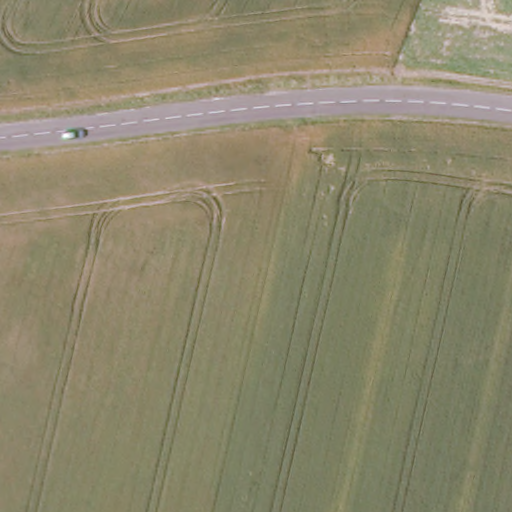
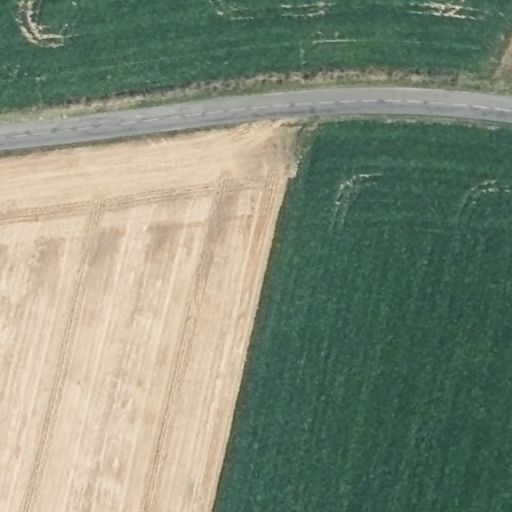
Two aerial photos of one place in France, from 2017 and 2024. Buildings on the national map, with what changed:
[]

